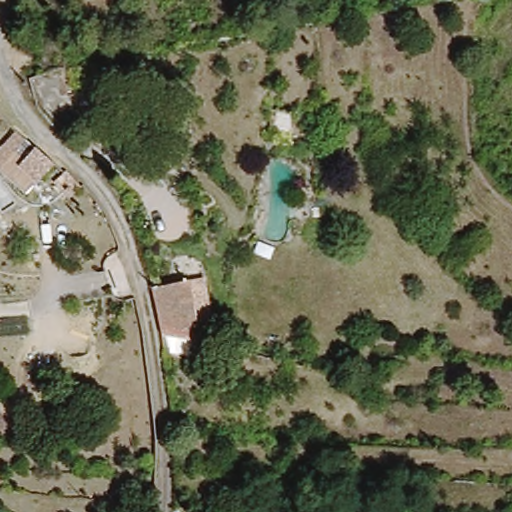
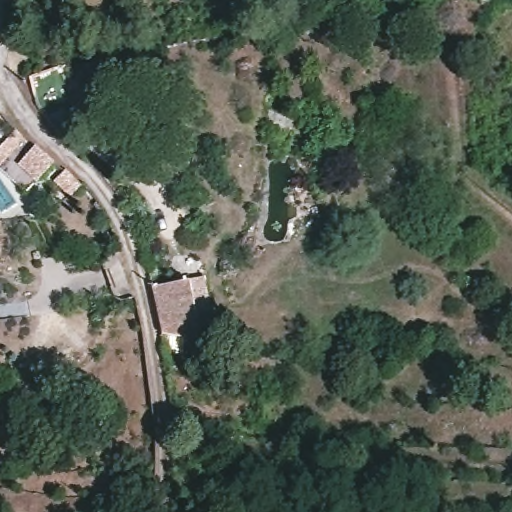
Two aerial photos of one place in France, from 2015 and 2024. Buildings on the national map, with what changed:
unchanged [(47,69),(60,66),(70,110),(74,110),(78,129),(58,134),(44,117),(31,97),(29,83),(27,74),(47,69)]
unchanged [(267,117),(265,137),(250,134),(252,114),(267,117)]
unchanged [(55,154),(44,173),(35,188),(0,168),(0,148),(11,129),(29,139),(55,154)]
unchanged [(79,179),(69,192),(52,178),(62,165),(79,179)]
unchanged [(166,346),(162,330),(153,279),(192,277),(207,277),(210,316),(215,318),(212,332),(202,330),(202,346),(166,346)]

